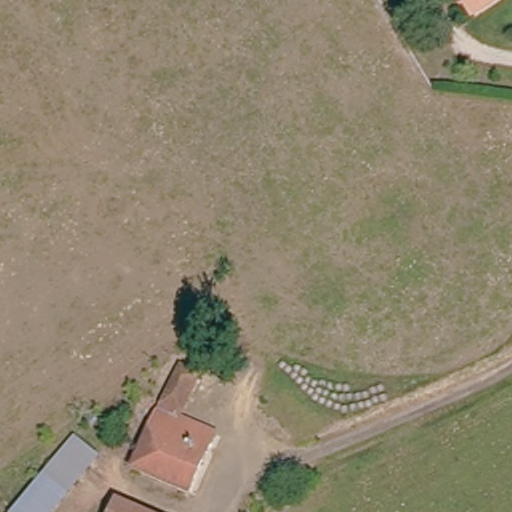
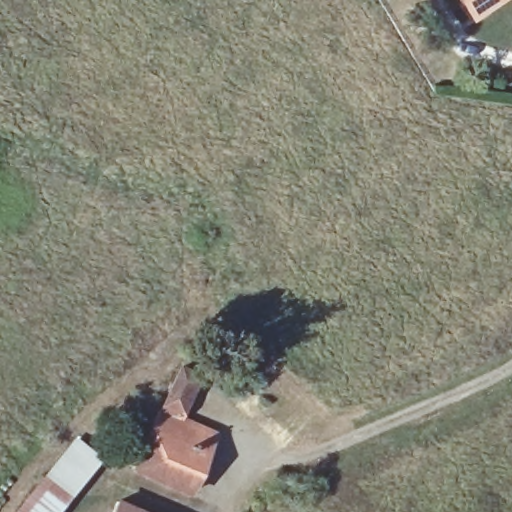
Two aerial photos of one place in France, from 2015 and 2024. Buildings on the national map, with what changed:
unchanged [(463,0),(489,0),(471,12),(463,0)]
unchanged [(179,418),(215,434),(189,494),(131,469),(158,410),(159,411),(182,367),(200,376),(179,418)]
unchanged [(99,459),(55,512),(15,512),(75,440),(99,459)]
unchanged [(137,512),(107,512),(111,501),(137,512)]

